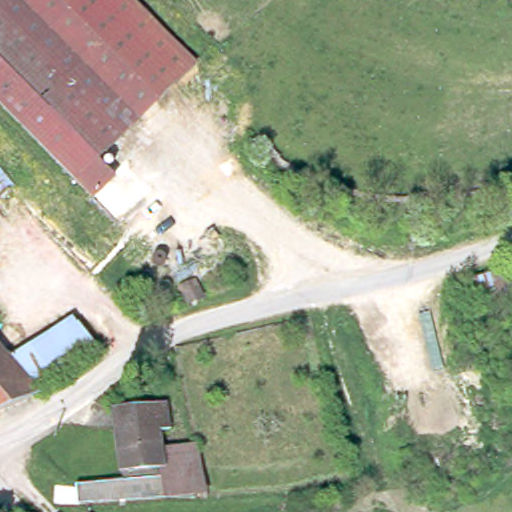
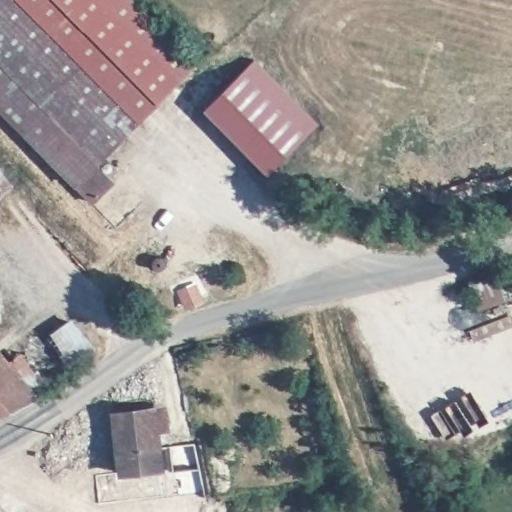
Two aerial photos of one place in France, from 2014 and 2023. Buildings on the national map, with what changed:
unchanged [(95,163),(113,179),(91,201),(0,109),(0,0),(132,0),(194,63),(95,163)]
new [(318,125),(268,174),(204,108),(255,57),(318,125)]
unchanged [(11,186),(0,196),(0,173),(11,186)]
unchanged [(512,293),(476,305),(468,281),(506,268),(512,286),(512,293)]
unchanged [(185,305),(178,288),(193,281),(201,298),(185,305)]
unchanged [(8,358),(72,316),(93,342),(28,384),(8,358)]
unchanged [(8,358),(28,384),(35,393),(29,396),(0,407),(0,348),(8,358)]
unchanged [(203,498),(77,505),(75,486),(120,482),(112,413),(151,408),(153,416),(164,415),(166,430),(155,431),(157,450),(195,445),(206,497),(203,498)]

